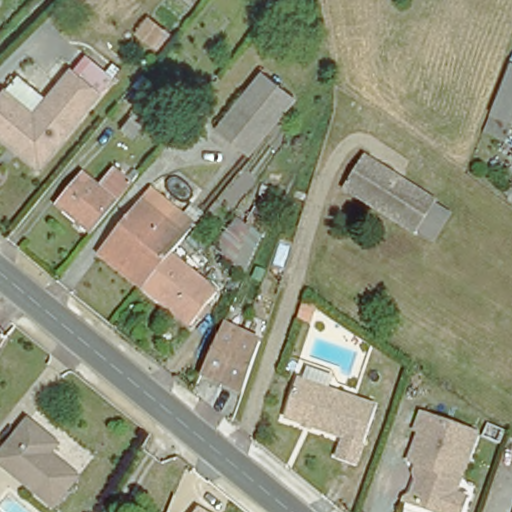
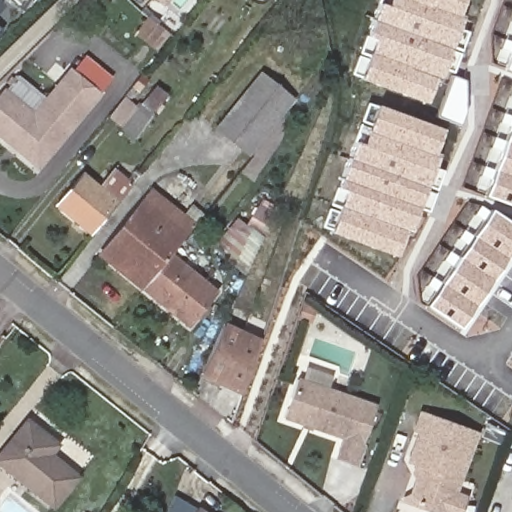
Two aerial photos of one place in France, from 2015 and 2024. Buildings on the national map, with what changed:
new [(163,2),(161,0),(164,0),(163,2)]
new [(431,91),(427,103),(359,79),(376,35),(368,32),(379,4),(387,7),(389,0),(465,0),(463,5),(464,17),(439,82),(431,91)]
new [(0,8),(0,3),(3,6),(0,8)]
unchanged [(138,34),(149,21),(167,35),(157,48),(138,34)]
new [(507,68),(512,52),(512,69),(507,68)]
demolished [(509,128),(488,119),(508,69),(512,71),(512,120),(509,128)]
unchanged [(0,101),(6,93),(37,118),(74,73),(98,94),(38,169),(16,152),(10,147),(0,138),(0,101)]
unchanged [(220,127),(260,77),(289,100),(249,150),(220,127)]
unchanged [(134,138),(123,129),(150,96),(160,104),(134,138)]
new [(319,227),(334,186),(336,187),(353,143),(351,142),(366,103),(376,107),(376,105),(443,130),(434,153),(439,154),(433,169),(442,171),(427,212),(418,210),(409,235),(404,233),(396,256),(329,232),(319,227)]
new [(486,195),(512,123),(512,204),(486,195)]
demolished [(436,203),(417,234),(344,189),(365,156),(436,203)]
unchanged [(54,206),(79,175),(96,190),(113,171),(128,183),(112,203),(88,233),(54,206)]
unchanged [(100,253),(151,191),(194,226),(170,256),(144,288),(100,253)]
unchanged [(211,248),(234,220),(246,226),(259,195),(277,206),(247,276),(211,248)]
new [(427,305),(491,211),(512,225),(512,251),(459,328),(427,305)]
unchanged [(170,256),(217,293),(189,325),(144,288),(170,256)]
unchanged [(228,324),(264,341),(247,393),(205,373),(228,324)]
unchanged [(373,410),(350,467),(334,461),(339,444),(281,422),(298,381),(373,410)]
unchanged [(445,512),(411,500),(406,498),(419,462),(412,459),(423,429),(418,427),(424,412),(478,432),(456,491),(468,495),(462,512),(445,512)]
unchanged [(60,456),(53,465),(80,488),(60,512),(58,512),(5,470),(34,434),(60,456)]
unchanged [(212,512),(195,512),(199,505),(212,512)]

